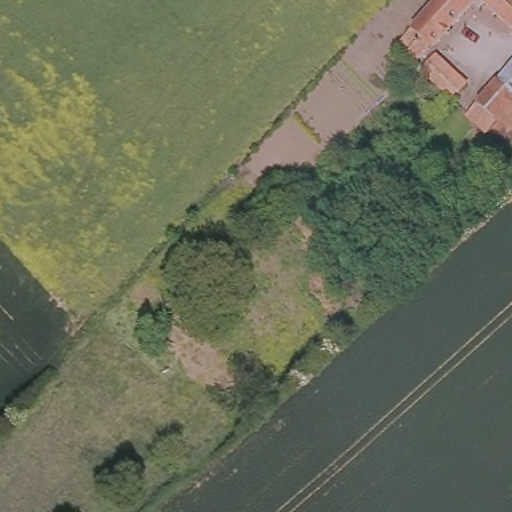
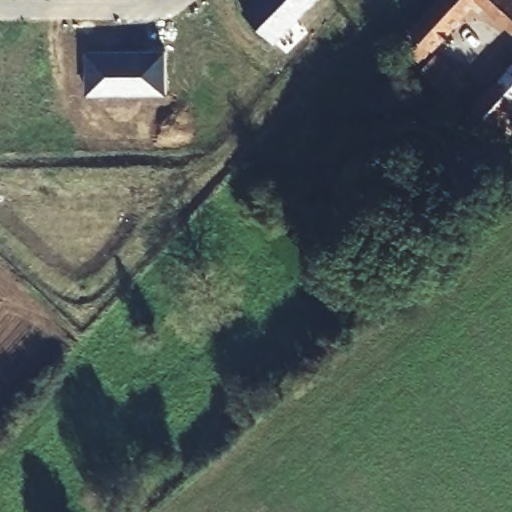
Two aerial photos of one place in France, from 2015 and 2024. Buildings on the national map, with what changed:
new [(254,0),(313,0),(275,40),(245,10),(254,0)]
unchanged [(413,59),(395,40),(434,0),(471,0),(413,59)]
unchanged [(512,25),(509,28),(477,0),(512,0),(512,25)]
new [(166,50),(166,93),(88,93),(87,52),(166,50)]
unchanged [(462,85),(447,100),(416,70),(430,55),(462,85)]
unchanged [(466,113),(512,63),(512,102),(485,131),(466,113)]
unchanged [(485,131),(512,102),(512,125),(496,141),(485,131)]

